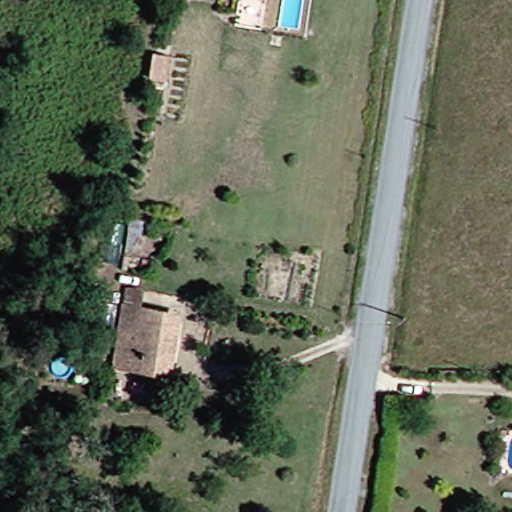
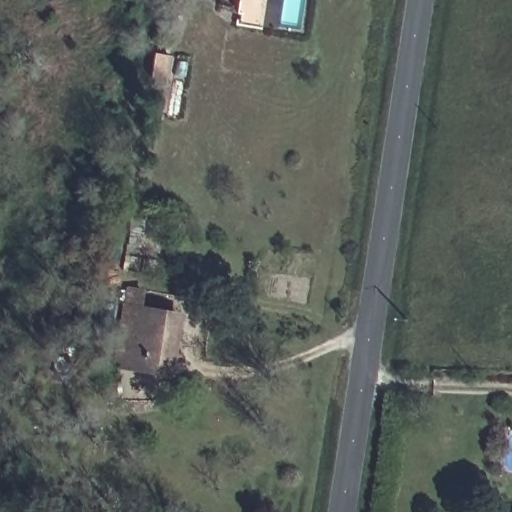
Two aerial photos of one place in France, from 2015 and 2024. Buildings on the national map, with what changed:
unchanged [(189,292),(182,368),(113,364),(115,342),(120,294),(120,286),(189,292)]

